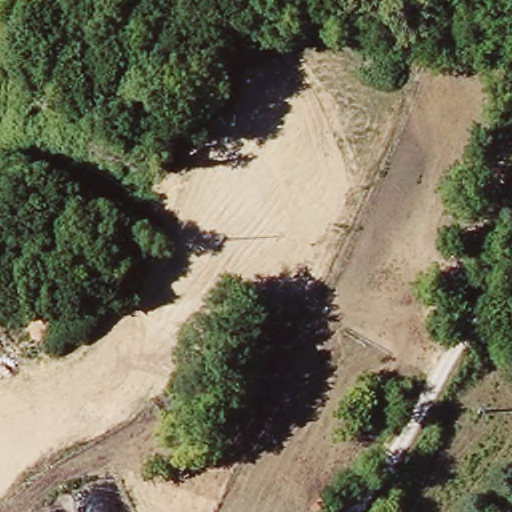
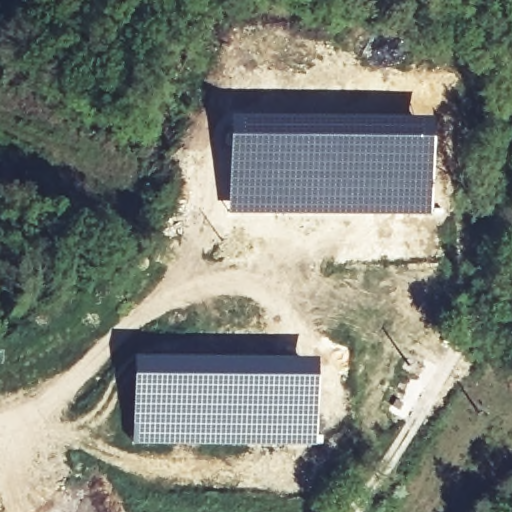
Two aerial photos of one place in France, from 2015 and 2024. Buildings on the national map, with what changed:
new [(432,117),(432,215),(227,215),(227,116),(432,117)]
new [(132,356),(316,358),(317,444),(132,445),(132,356)]

